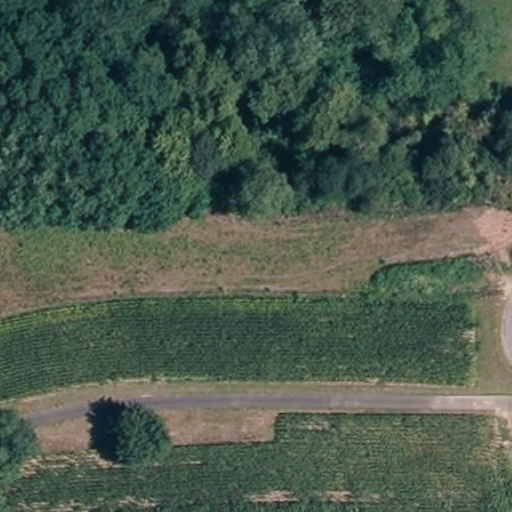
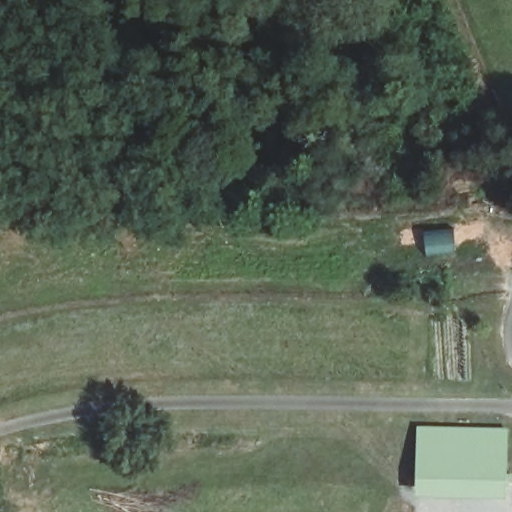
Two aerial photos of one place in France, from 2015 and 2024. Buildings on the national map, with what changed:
new [(508,429),(507,500),(416,500),(417,429),(508,429)]

